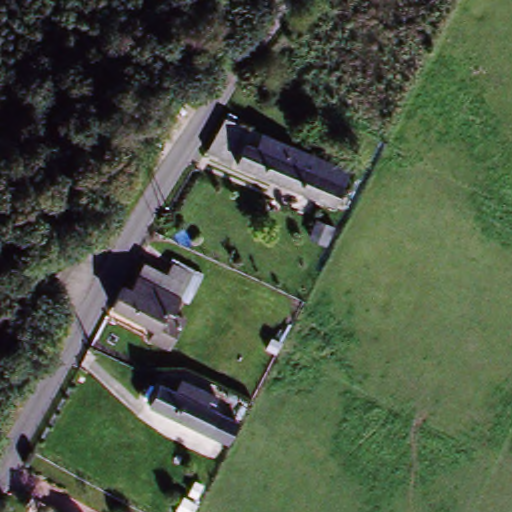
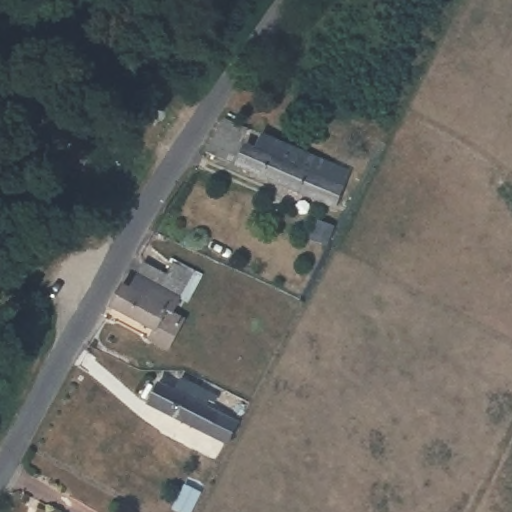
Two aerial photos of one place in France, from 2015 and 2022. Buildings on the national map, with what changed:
unchanged [(222,121),(246,130),(230,168),(202,156),(222,121)]
unchanged [(235,170),(245,148),(261,155),(265,144),(292,156),(319,166),(345,178),(329,208),(235,170)]
unchanged [(145,336),(151,325),(136,317),(155,286),(133,273),(143,257),(165,269),(170,256),(193,271),(172,307),(166,303),(160,314),(182,324),(174,339),(168,349),(145,336)]
unchanged [(125,286),(133,273),(155,286),(136,317),(103,298),(105,295),(113,281),(125,286)]
unchanged [(147,410),(160,386),(175,394),(181,381),(210,399),(203,410),(220,419),(205,444),(147,410)]

